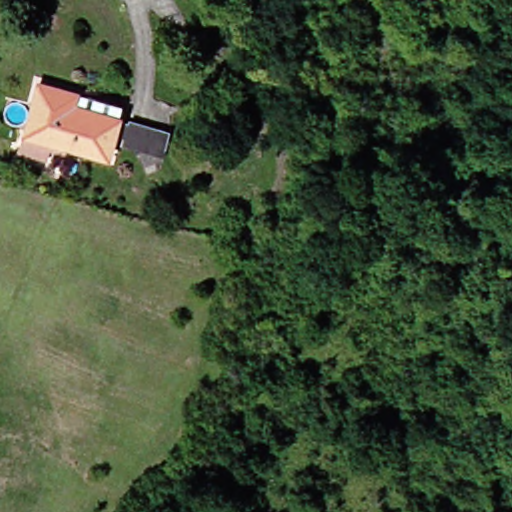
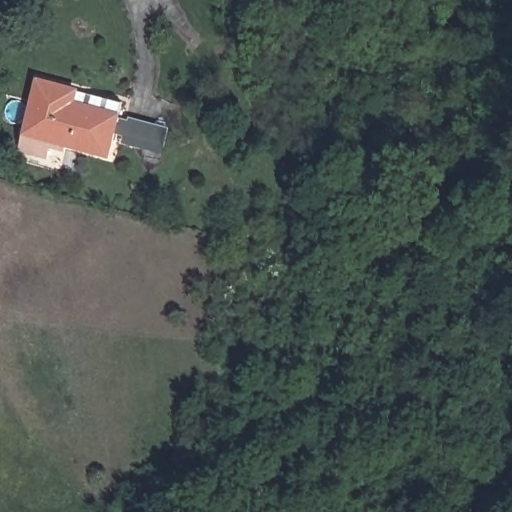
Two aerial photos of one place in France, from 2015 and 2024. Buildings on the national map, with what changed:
unchanged [(28,147),(32,132),(45,81),(81,90),(79,102),(123,114),(113,152),(55,138),(51,154),(28,147)]

